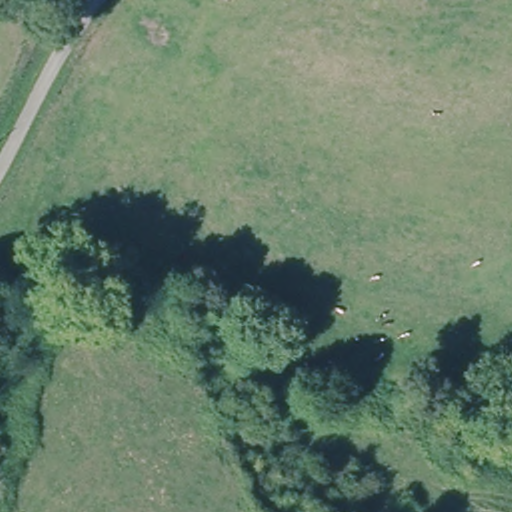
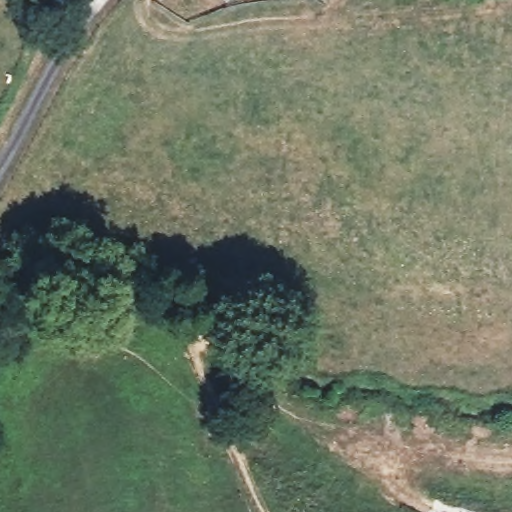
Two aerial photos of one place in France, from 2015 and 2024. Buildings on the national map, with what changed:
[]

